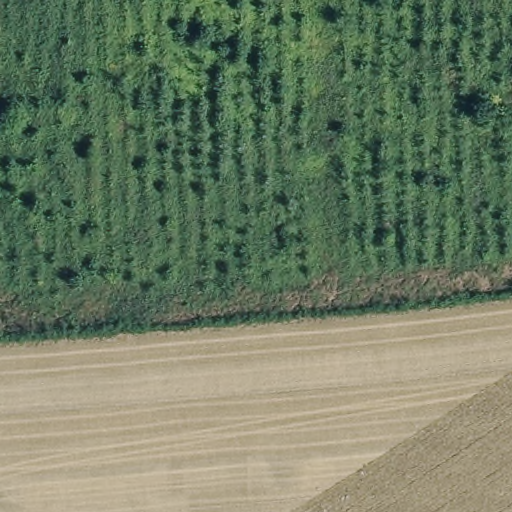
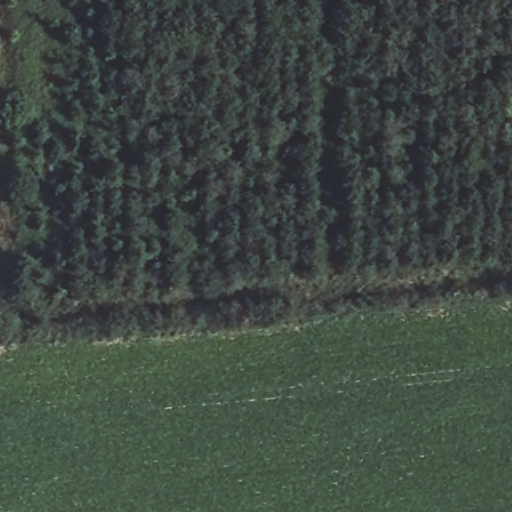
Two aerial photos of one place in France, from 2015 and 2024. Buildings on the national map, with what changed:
[]

